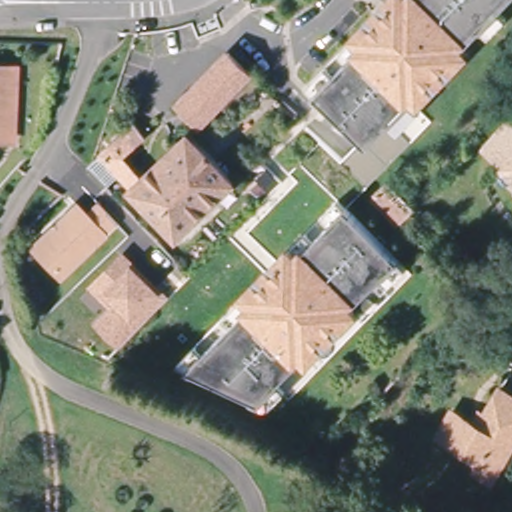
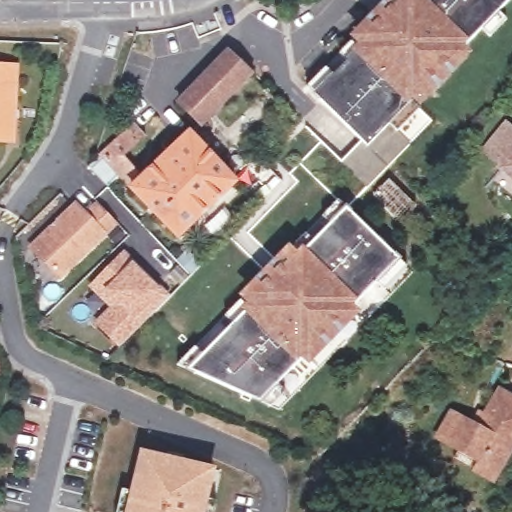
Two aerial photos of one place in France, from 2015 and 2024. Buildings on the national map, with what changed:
unchanged [(491,34),(483,26),(467,41),(463,37),(409,93),(434,117),(411,140),(391,120),(369,142),(316,91),(365,40),(357,33),(389,0),(508,0),(500,9),(507,16),(491,34)]
unchanged [(200,116),(191,107),(179,95),(227,47),(247,69),(248,69),(200,116)]
unchanged [(0,137),(0,64),(20,64),(19,100),(18,137),(12,137),(0,137)]
unchanged [(512,121),(512,166),(490,142),(512,121)]
unchanged [(130,185),(119,173),(107,184),(92,169),(88,164),(94,158),(133,122),(144,134),(122,153),(141,175),(130,185)]
unchanged [(141,175),(162,155),(188,130),(234,180),(176,235),(130,185),(141,175)]
unchanged [(375,195),(392,179),(418,204),(401,220),(375,195)]
unchanged [(273,408),(262,403),(190,371),(179,366),(197,348),(205,356),(255,305),(247,297),(290,252),(298,260),(332,225),(324,217),(340,201),(348,210),(401,261),(409,268),(386,291),(378,284),(357,306),(352,302),(348,306),(356,314),(310,361),(303,353),(298,357),(303,361),(279,385),(287,393),(273,408)]
unchanged [(62,278),(34,247),(80,205),(90,215),(102,204),(120,224),(62,278)]
unchanged [(166,291),(150,307),(155,312),(125,342),(102,319),(123,298),(102,277),(126,252),(166,291)]
unchanged [(462,445),(442,434),(456,408),(483,423),(503,387),(512,392),(512,447),(506,458),(496,477),(456,455),(462,445)]
new [(215,468),(204,512),(126,512),(140,451),(215,468)]

